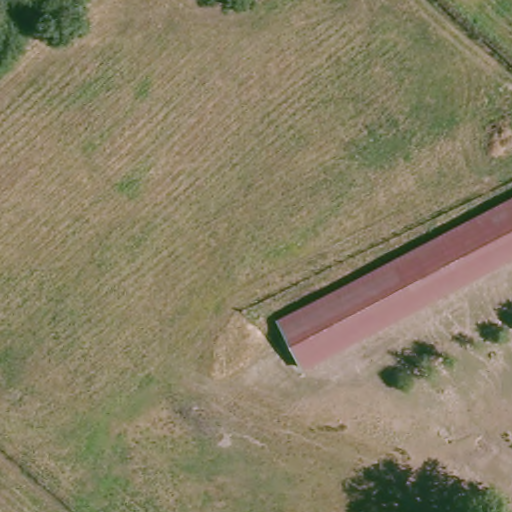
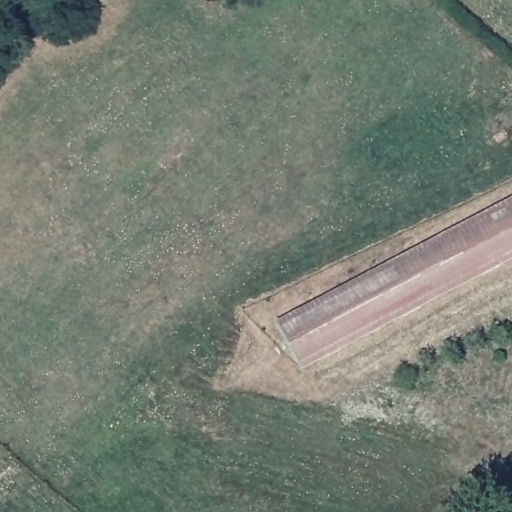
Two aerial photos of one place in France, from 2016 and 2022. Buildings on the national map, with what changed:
unchanged [(276,322),(512,195),(512,250),(299,364),(276,322)]

